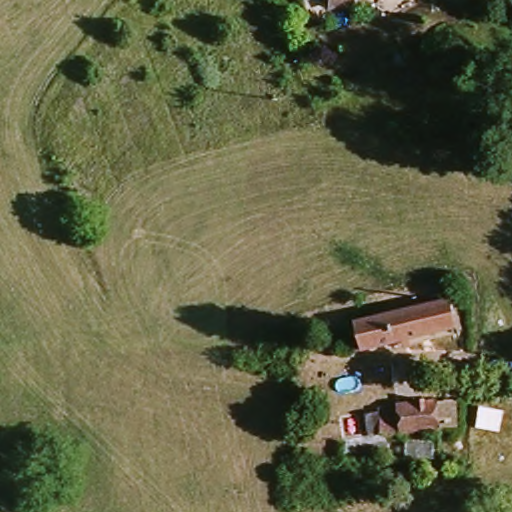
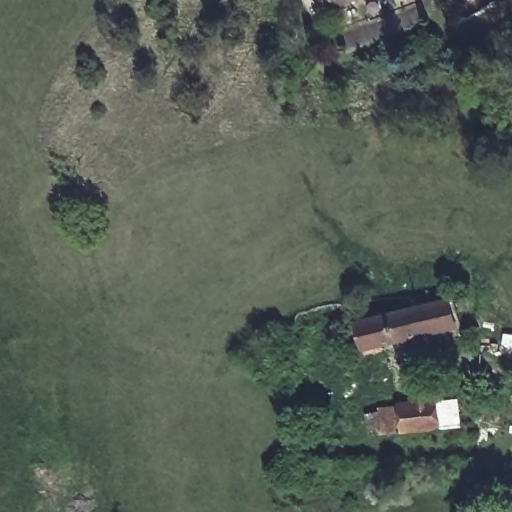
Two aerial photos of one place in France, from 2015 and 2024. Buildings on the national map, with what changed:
unchanged [(302,15),(297,0),(341,0),(302,15)]
unchanged [(359,323),(418,312),(444,308),(448,337),(422,341),(366,350),(359,323)]
unchanged [(380,415),(379,410),(398,407),(441,400),(445,431),(398,435),(384,436),(372,437),(366,417),(380,415)]

